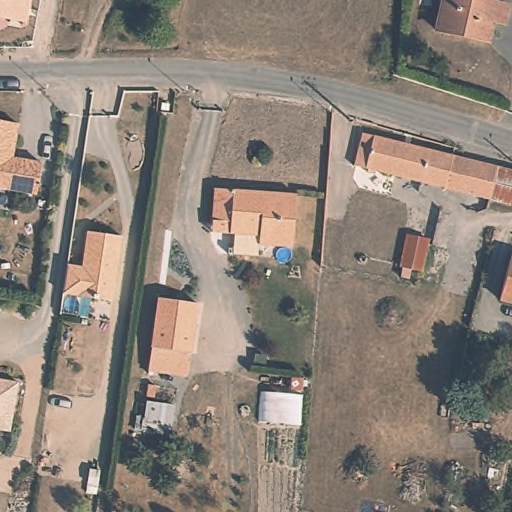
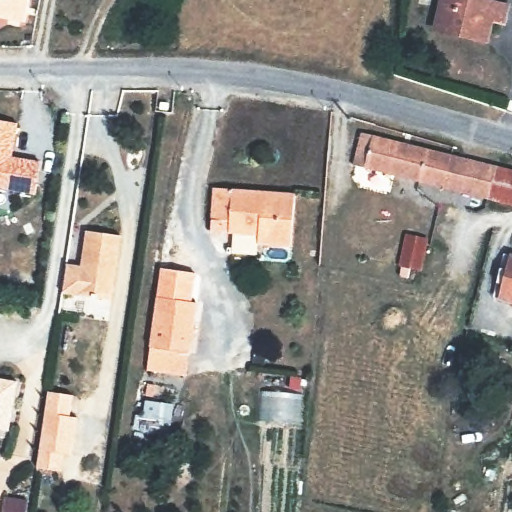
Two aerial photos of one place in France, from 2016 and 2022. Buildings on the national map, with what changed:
unchanged [(0,20),(0,0),(30,0),(25,25),(0,20)]
unchanged [(442,0),(484,0),(508,5),(505,22),(491,19),(485,41),(436,28),(442,0)]
unchanged [(37,197),(0,190),(0,122),(20,126),(14,158),(43,165),(39,186),(37,197)]
unchanged [(442,188),(352,165),(360,131),(451,154),(442,188)]
unchanged [(500,202),(442,188),(451,154),(512,170),(512,205),(500,202)]
unchanged [(215,186),(296,193),(291,246),(259,243),(260,234),(230,231),(231,220),(212,218),(215,186)]
unchanged [(69,261),(82,264),(89,228),(122,234),(114,297),(65,290),(69,261)]
unchanged [(420,272),(398,265),(405,232),(428,240),(420,272)]
unchanged [(502,299),(512,260),(512,302),(502,299)]
unchanged [(147,371),(150,349),(159,300),(198,306),(190,356),(186,378),(147,371)]
unchanged [(0,434),(0,383),(16,385),(8,435),(0,434)]
new [(45,394),(69,398),(66,419),(74,420),(68,457),(60,456),(58,473),(33,470),(36,452),(45,394)]
unchanged [(82,484),(85,470),(95,472),(92,487),(82,484)]

